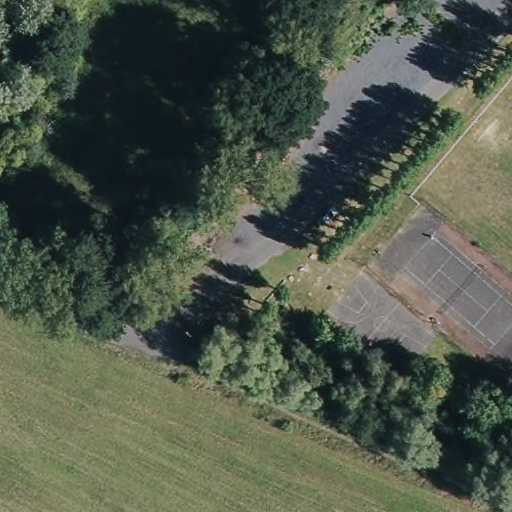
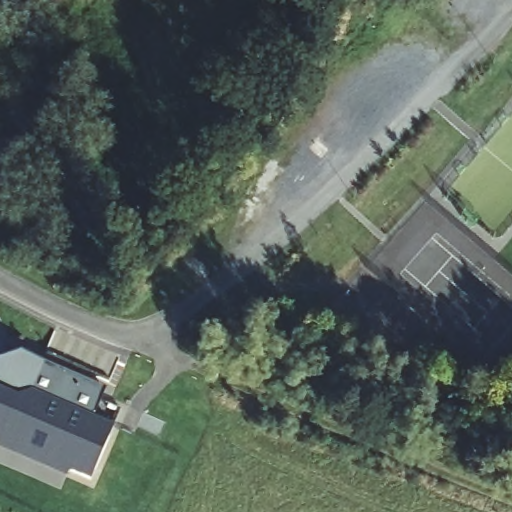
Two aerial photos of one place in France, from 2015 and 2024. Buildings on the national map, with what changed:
new [(90,481),(69,472),(66,478),(0,450),(0,359),(20,351),(106,389),(94,419),(113,426),(90,481)]

